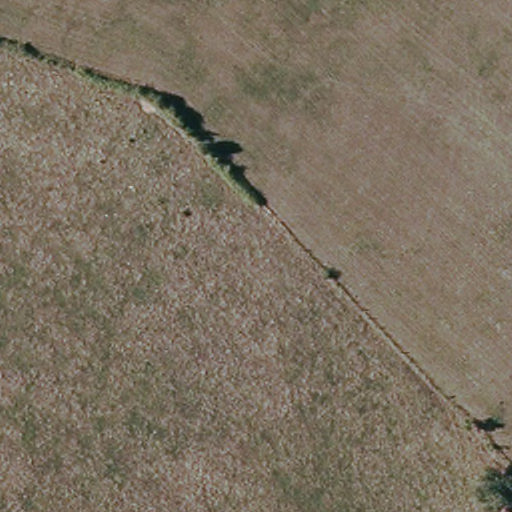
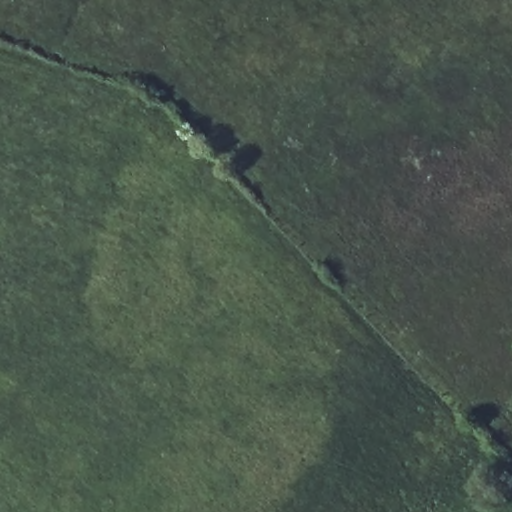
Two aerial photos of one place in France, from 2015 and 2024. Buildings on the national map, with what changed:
[]

